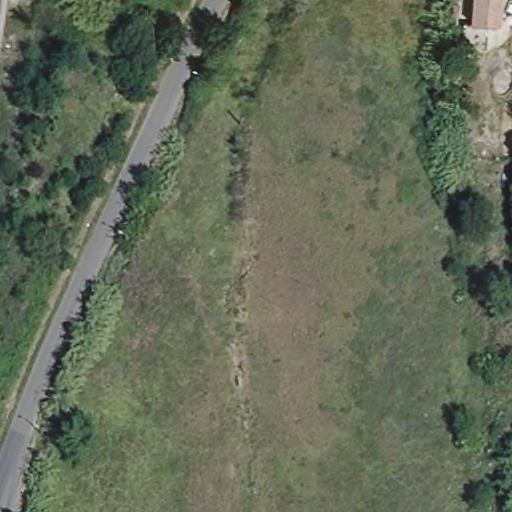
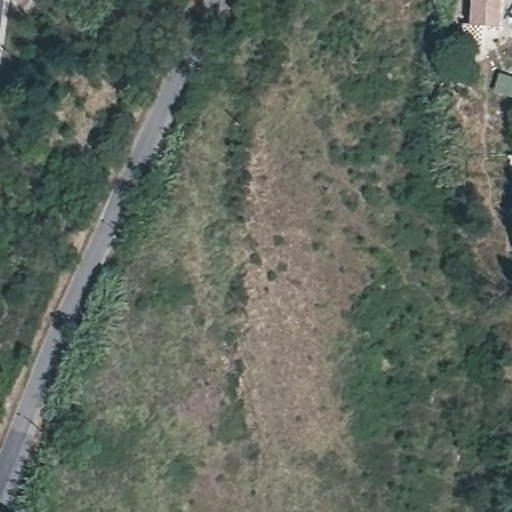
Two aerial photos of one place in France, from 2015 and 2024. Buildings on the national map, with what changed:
unchanged [(473,19),(474,0),(501,0),(498,22),(473,19)]

